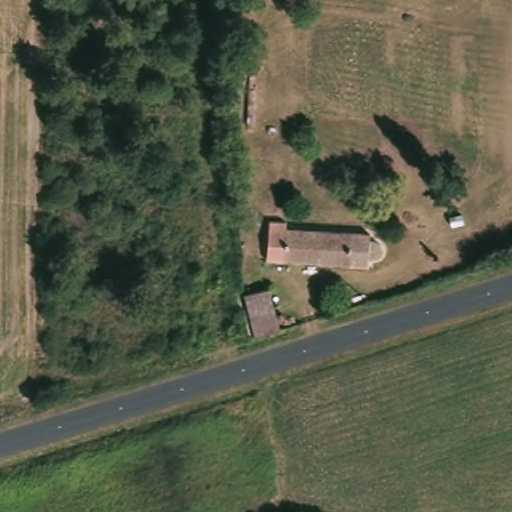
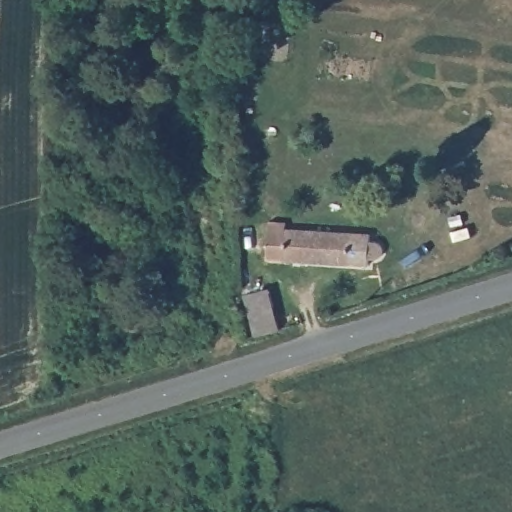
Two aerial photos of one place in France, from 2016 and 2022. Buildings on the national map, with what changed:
unchanged [(287,221),(287,231),(373,233),(374,240),(381,241),(384,243),(387,248),(386,254),(381,258),(373,258),(372,264),(273,261),(276,221),(287,221)]

